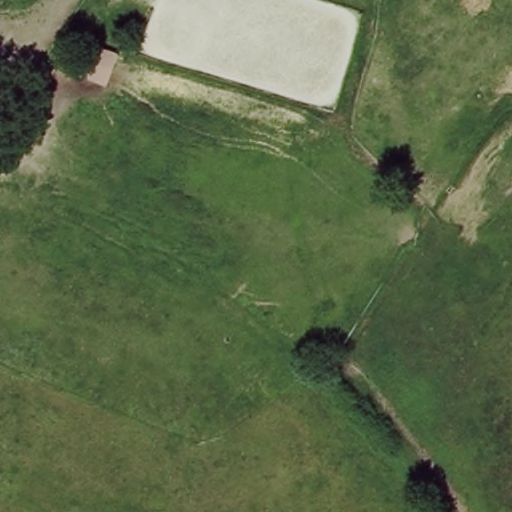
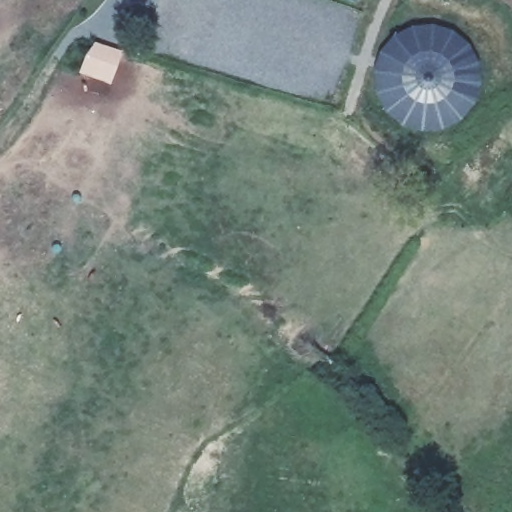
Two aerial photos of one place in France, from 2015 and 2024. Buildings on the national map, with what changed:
new [(395,35),(414,27),(436,23),(454,29),(467,40),(476,51),(482,68),(482,87),(473,105),(459,120),(442,131),(420,131),(404,126),(387,114),(377,96),(375,75),(381,55),(395,35)]
unchanged [(81,74),(91,41),(125,51),(112,85),(81,74)]

